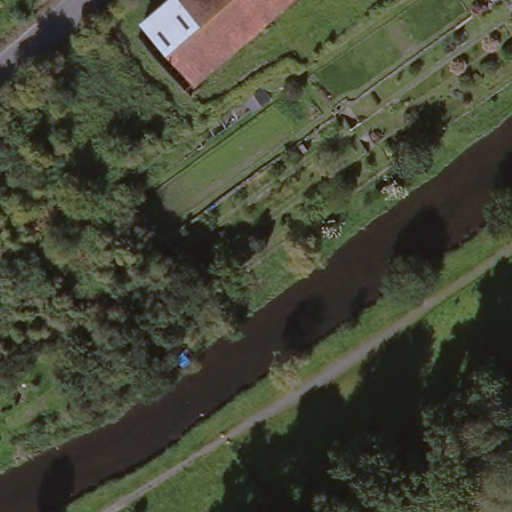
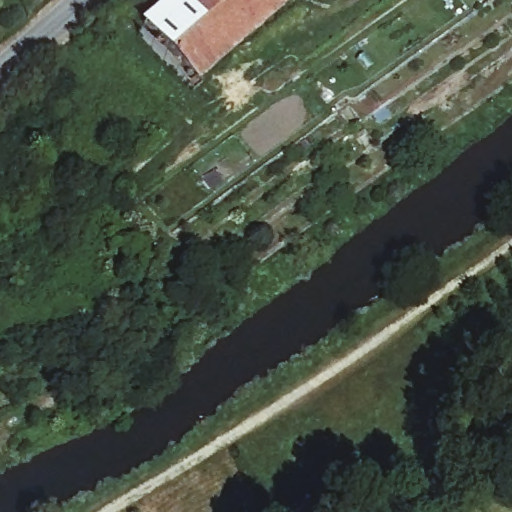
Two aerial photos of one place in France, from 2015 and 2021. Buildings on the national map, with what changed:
unchanged [(195,82),(132,16),(153,0),(293,0),(195,82)]

